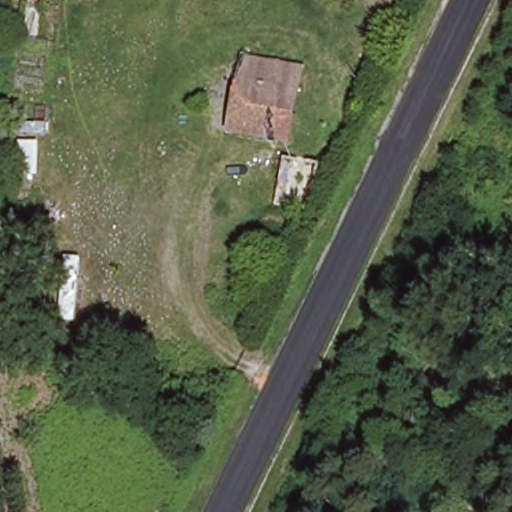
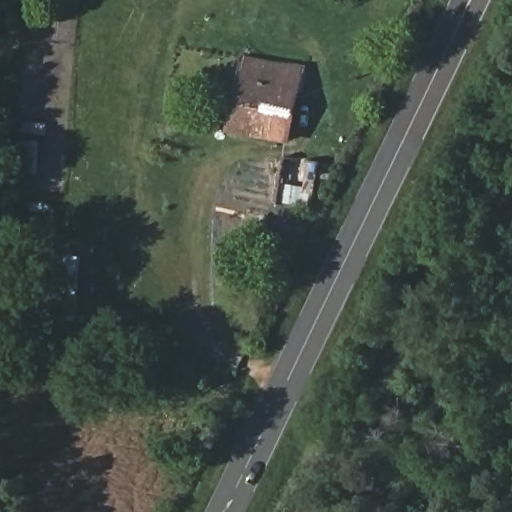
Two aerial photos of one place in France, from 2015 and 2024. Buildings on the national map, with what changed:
unchanged [(311,74),(297,137),(232,122),(246,60),(311,74)]
unchanged [(70,324),(49,320),(57,255),(81,255),(70,324)]

